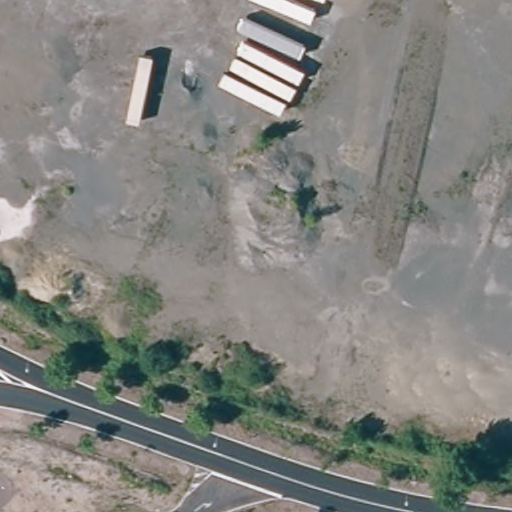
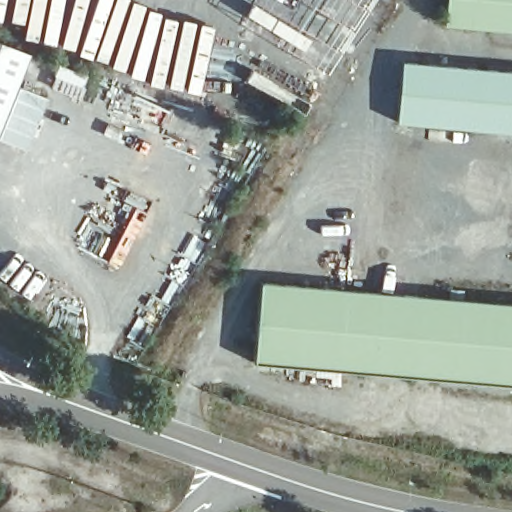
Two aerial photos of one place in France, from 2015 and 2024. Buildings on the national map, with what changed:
new [(512,0),(512,30),(446,25),(448,0),(512,0)]
new [(0,128),(0,42),(29,54),(0,128)]
new [(59,64),(88,75),(80,97),(51,86),(59,64)]
new [(405,66),(512,76),(512,136),(400,125),(405,66)]
new [(256,361),(260,282),(512,303),(512,383),(256,361)]

